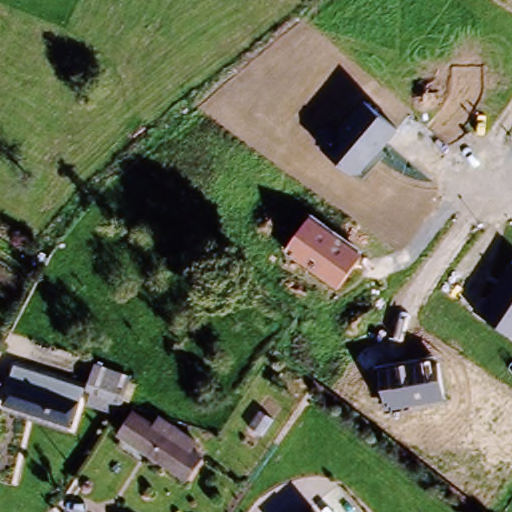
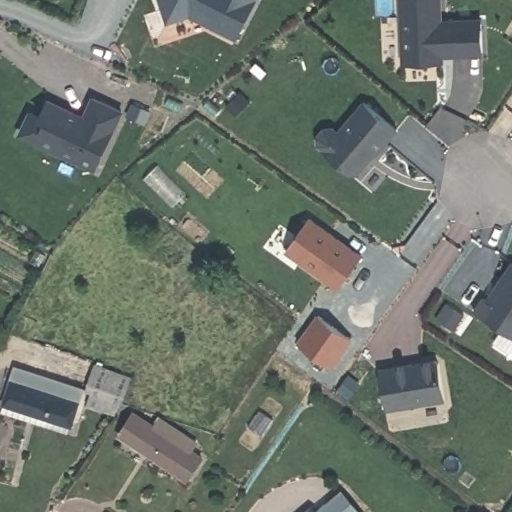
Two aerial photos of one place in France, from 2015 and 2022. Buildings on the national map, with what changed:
new [(237,42),(213,30),(214,29),(193,18),(169,26),(160,0),(259,0),(237,42)]
new [(442,20),(482,18),(484,53),(454,56),(453,51),(444,51),(445,62),(404,64),(400,0),(441,0),(442,20)]
unchanged [(317,144),(358,97),(399,131),(357,175),(317,144)]
new [(83,121),(91,102),(120,114),(95,172),(42,149),(25,142),(35,121),(44,125),(52,108),(83,121)]
unchanged [(285,252),(312,215),(365,254),(337,289),(285,252)]
unchanged [(473,311),(508,259),(512,262),(512,335),(473,311)]
new [(353,339),(332,368),(295,343),(317,314),(353,339)]
unchanged [(378,368),(437,358),(445,401),(385,412),(378,368)]
unchanged [(99,369),(101,362),(112,365),(110,374),(147,387),(140,407),(117,399),(85,387),(92,366),(99,369)]
unchanged [(0,398),(11,365),(63,381),(80,386),(69,421),(67,428),(0,408),(0,400),(0,398)]
unchanged [(131,409),(152,422),(156,414),(192,436),(185,447),(197,454),(182,476),(115,431),(131,409)]
unchanged [(356,512),(313,512),(337,492),(356,512)]

